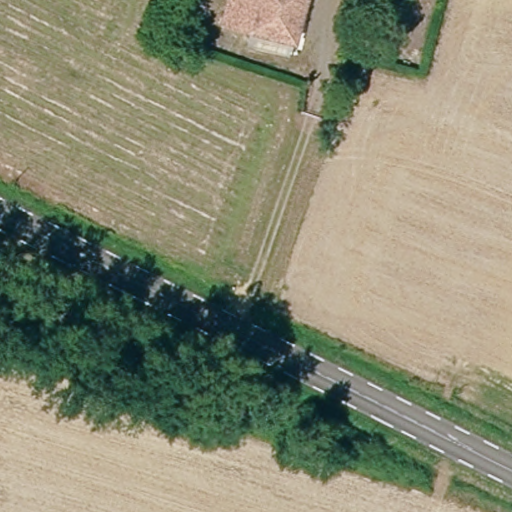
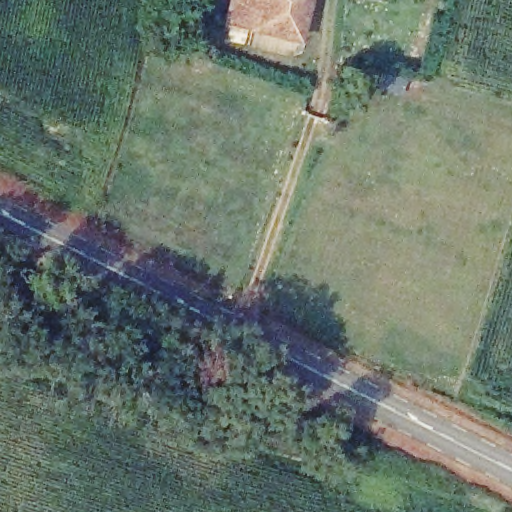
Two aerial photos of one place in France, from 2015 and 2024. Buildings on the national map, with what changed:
unchanged [(228,22),(233,0),(309,0),(301,38),(228,22)]

